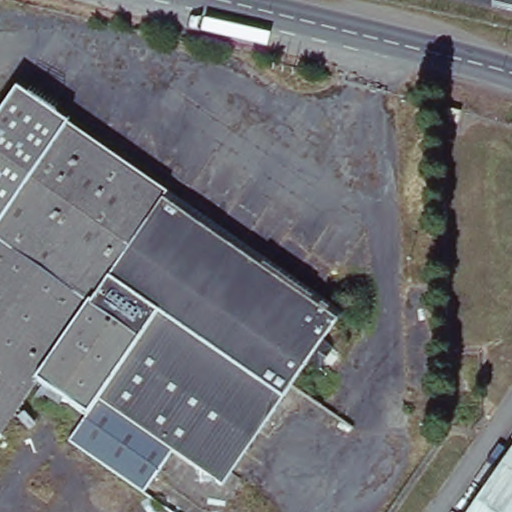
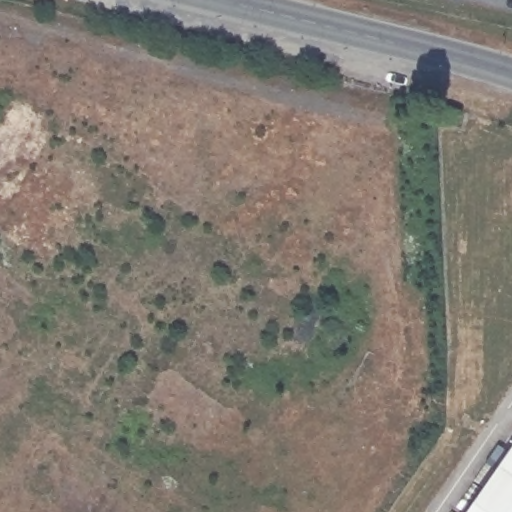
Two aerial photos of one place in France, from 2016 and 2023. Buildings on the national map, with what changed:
demolished [(16,92),(91,145),(134,175),(167,197),(38,381),(0,437),(0,115),(16,92)]
demolished [(167,197),(318,303),(331,312),(338,317),(320,344),(328,350),(315,368),(307,364),(290,387),(221,487),(172,451),(144,492),(71,442),(88,417),(38,381),(167,197)]
unchanged [(459,399),(459,370),(468,369),(470,397),(468,398),(459,399)]
unchanged [(512,512),(467,512),(512,446),(512,512)]

